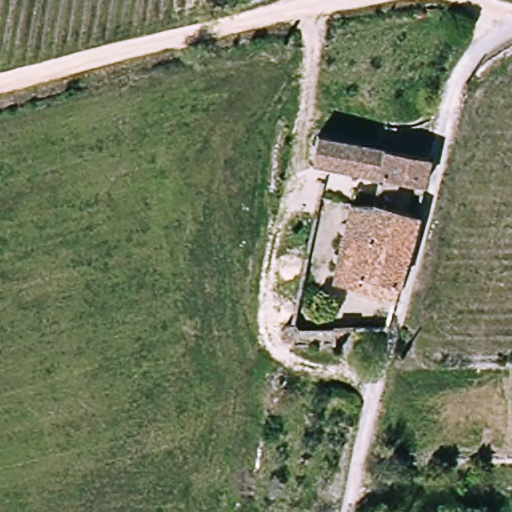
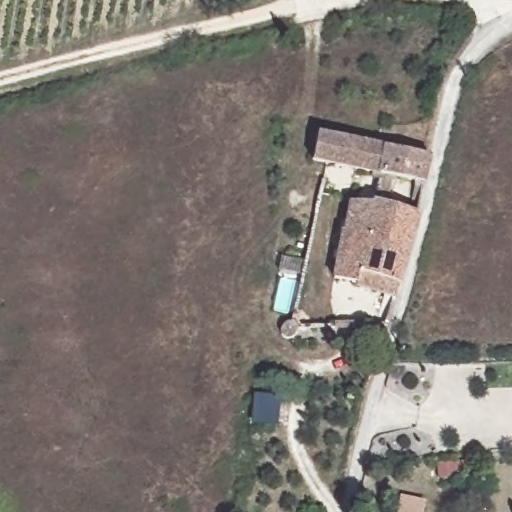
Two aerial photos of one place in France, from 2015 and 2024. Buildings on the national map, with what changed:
unchanged [(330,164),(306,159),(310,137),(379,147),(429,157),(422,183),(330,164)]
unchanged [(383,323),(372,318),(378,296),(326,281),(350,203),(374,209),(377,201),(412,217),(383,323)]
unchanged [(277,351),(280,335),(324,331),(323,347),(277,351)]
new [(400,495),(430,502),(427,512),(396,512),(400,495)]

